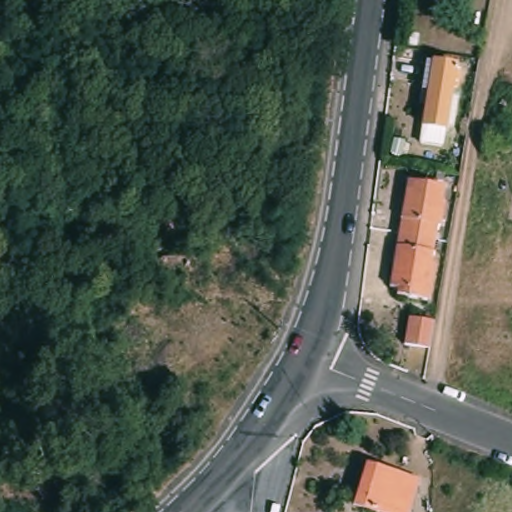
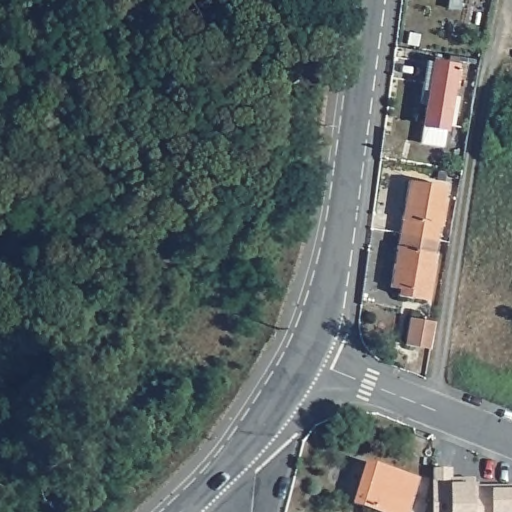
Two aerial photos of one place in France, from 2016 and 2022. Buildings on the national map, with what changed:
unchanged [(457,67),(447,130),(422,126),(427,94),(420,93),(422,82),(429,84),(432,63),(457,67)]
unchanged [(499,134),(497,146),(486,144),(488,132),(499,134)]
unchanged [(411,181),(449,188),(447,203),(451,204),(447,227),(442,226),(440,241),(439,241),(402,234),(411,181)]
unchanged [(401,289),(393,287),(402,234),(439,241),(440,241),(436,264),(439,265),(433,301),(411,297),(400,296),(401,289)]
unchanged [(408,345),(413,317),(439,322),(438,328),(435,350),(408,345)]
unchanged [(411,512),(368,512),(361,510),(373,470),(419,484),(411,512)]
new [(449,481),(472,481),(472,489),(512,488),(512,512),(431,512),(430,471),(449,471),(449,481)]

